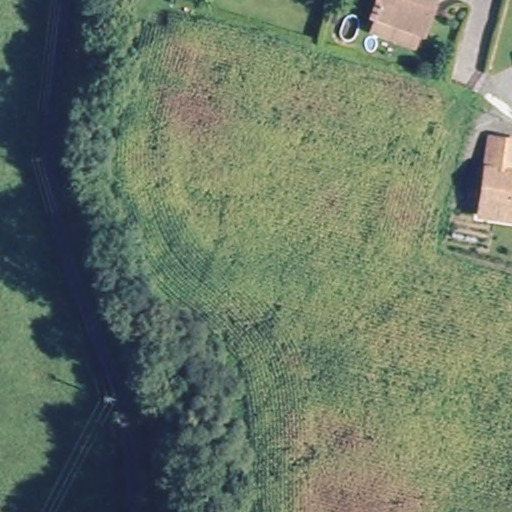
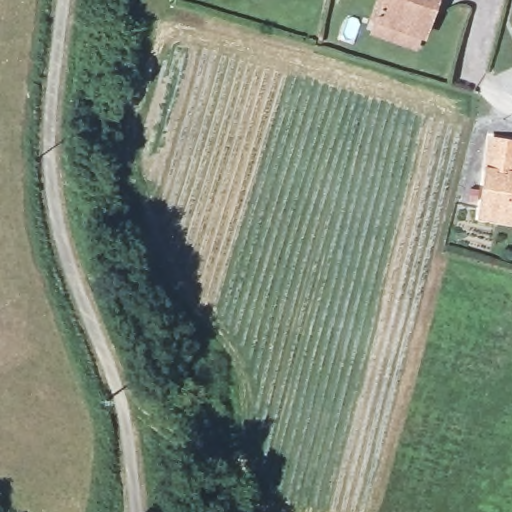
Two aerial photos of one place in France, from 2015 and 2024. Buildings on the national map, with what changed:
unchanged [(377,11),(373,9),(377,0),(431,0),(420,28),(416,27),(410,43),(370,26),(377,11)]
unchanged [(483,208),(500,133),(512,136),(512,215),(483,208)]

